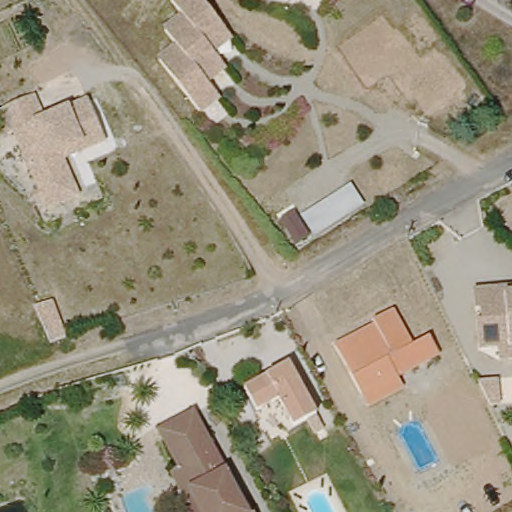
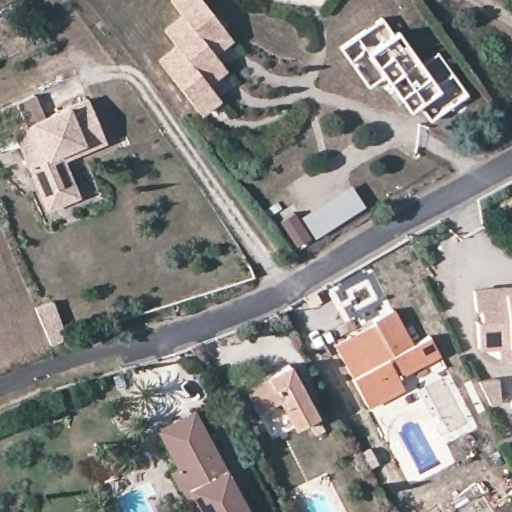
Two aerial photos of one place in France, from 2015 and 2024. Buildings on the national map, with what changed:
unchanged [(175,14),(164,0),(195,0),(223,36),(205,52),(175,14)]
unchanged [(217,67),(197,81),(169,44),(158,27),(175,14),(205,52),(217,67)]
new [(397,30),(421,62),(438,52),(468,93),(432,121),(419,105),(411,112),(385,76),(370,89),(341,48),(382,19),(397,30)]
unchanged [(169,44),(197,81),(207,94),(188,109),(152,59),(169,44)]
demolished [(470,106),(458,117),(445,100),(458,87),(470,106)]
unchanged [(52,205),(47,195),(25,142),(18,126),(13,127),(0,133),(0,127),(11,123),(3,104),(37,89),(47,112),(92,94),(111,137),(90,146),(67,155),(79,181),(83,192),(52,205)]
new [(347,192),(357,210),(310,235),(300,217),(347,192)]
unchanged [(497,353),(476,356),(474,342),(467,292),(512,284),(512,361),(499,363),(497,353)]
unchanged [(47,303),(65,339),(48,347),(31,311),(47,303)]
unchanged [(331,348),(366,330),(363,320),(388,306),(413,343),(429,334),(440,355),(397,381),(402,392),(367,412),(357,394),(331,348)]
unchanged [(316,425),(308,411),(295,418),(280,391),(259,403),(245,378),(288,355),(317,406),(325,420),(316,425)]
unchanged [(498,377),(502,402),(492,404),(480,380),(498,377)]
unchanged [(233,469),(255,512),(207,512),(181,463),(163,426),(196,411),(228,472),(233,469)]
unchanged [(172,467),(181,463),(207,512),(194,512),(172,467)]

